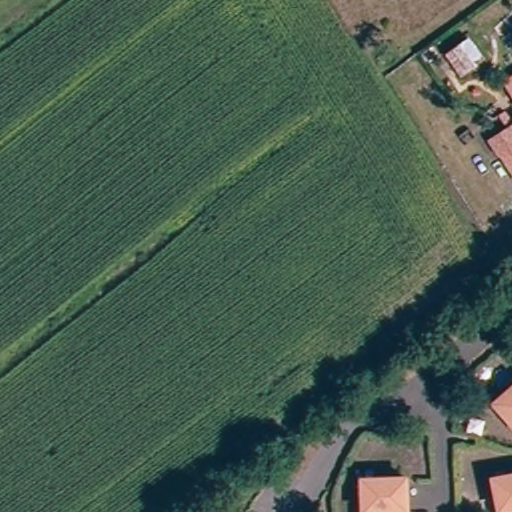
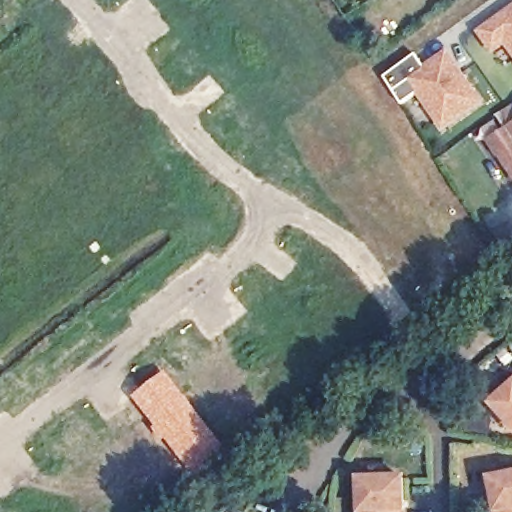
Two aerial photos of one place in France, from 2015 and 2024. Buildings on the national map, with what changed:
new [(507,50),(494,59),(481,41),(512,18),(512,57),(507,50)]
new [(434,122),(420,102),(405,112),(387,86),(417,64),(427,77),(448,63),(481,111),(452,131),(444,137),(434,122)]
unchanged [(502,157),(499,158),(491,146),(512,132),(512,173),(502,157)]
new [(165,371),(229,452),(195,478),(156,431),(132,396),(165,371)]
unchanged [(512,377),(512,420),(500,407),(491,396),(500,387),(512,377)]
unchanged [(492,483),(489,472),(503,468),(512,467),(512,512),(497,512),(492,483)]
unchanged [(359,485),(358,472),(372,472),(402,471),(403,493),(404,512),(360,512),(359,485)]

